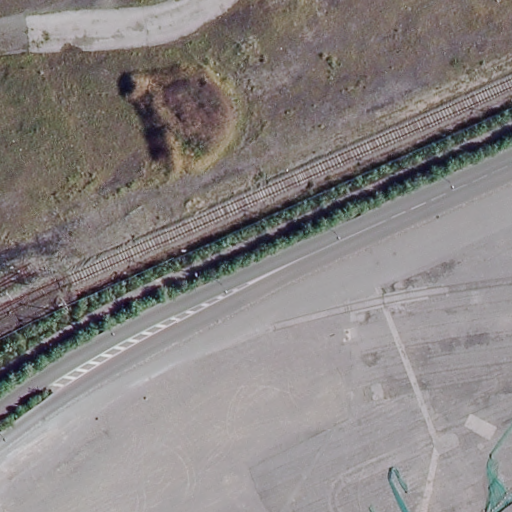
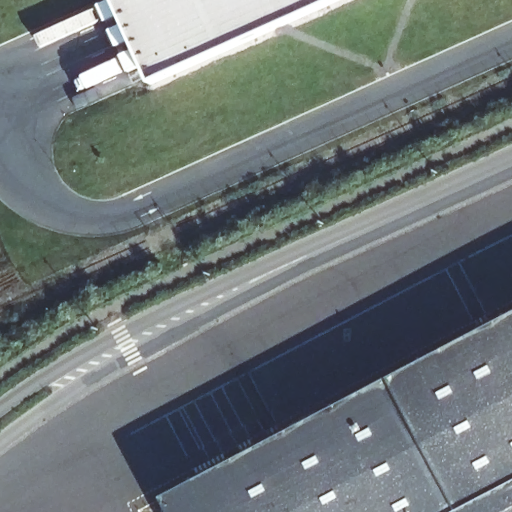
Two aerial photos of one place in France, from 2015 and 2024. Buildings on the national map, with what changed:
new [(117,0),(337,0),(152,81),(117,0)]
new [(512,317),(512,512),(170,512),(162,498),(512,317)]
demolished [(213,385),(271,506),(258,512),(0,512),(0,506),(75,449),(213,385)]

